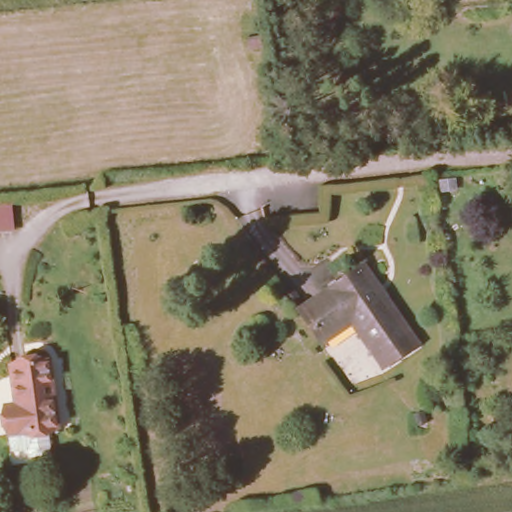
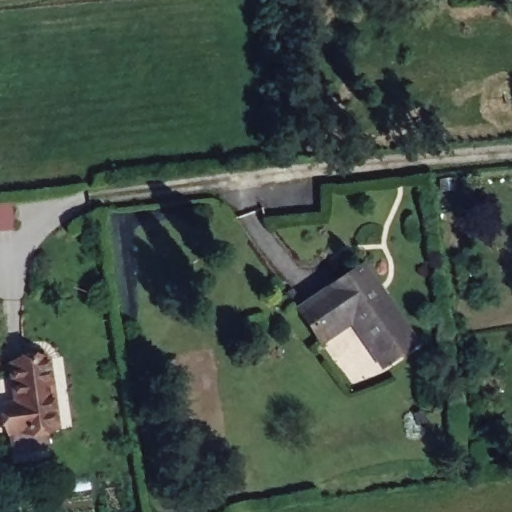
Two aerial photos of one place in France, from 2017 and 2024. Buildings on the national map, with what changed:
unchanged [(439,187),(439,179),(453,176),(454,187),(439,187)]
unchanged [(13,201),(15,226),(0,227),(0,202),(13,201)]
unchanged [(316,332),(297,305),(286,288),(293,282),(304,300),(363,261),(416,340),(383,362),(353,319),(321,341),(316,332)]
unchanged [(48,352),(58,421),(9,428),(4,399),(15,397),(10,358),(48,352)]
unchanged [(423,410),(426,422),(414,426),(413,413),(423,410)]

